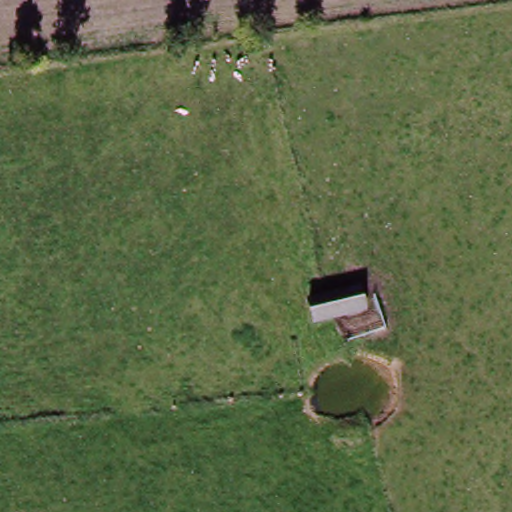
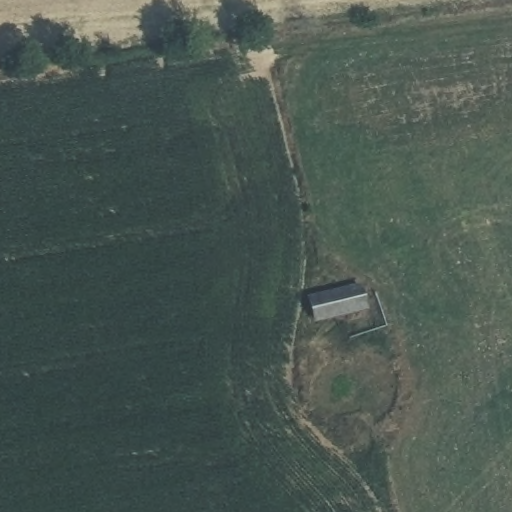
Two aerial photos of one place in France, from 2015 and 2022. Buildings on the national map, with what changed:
unchanged [(337,314),(312,320),(305,297),(327,293),(353,286),(358,308),(337,314)]

